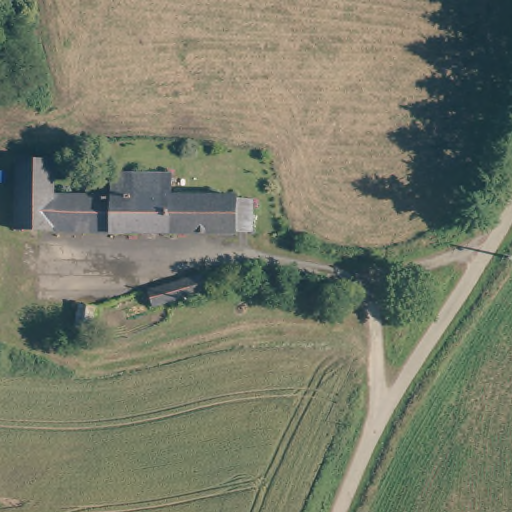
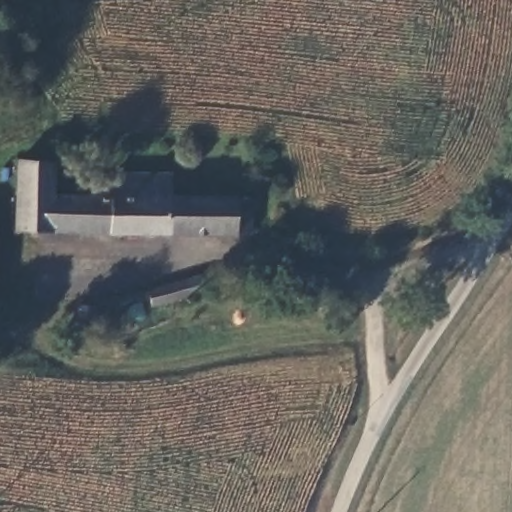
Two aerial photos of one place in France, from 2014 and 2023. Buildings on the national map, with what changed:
unchanged [(12,227),(14,156),(52,159),(51,190),(91,192),(92,181),(109,182),(109,172),(166,175),(172,197),(174,197),(232,200),(232,239),(12,227)]
unchanged [(146,310),(143,294),(196,282),(199,300),(146,310)]
unchanged [(84,345),(69,345),(70,311),(85,311),(84,336),(84,345)]

